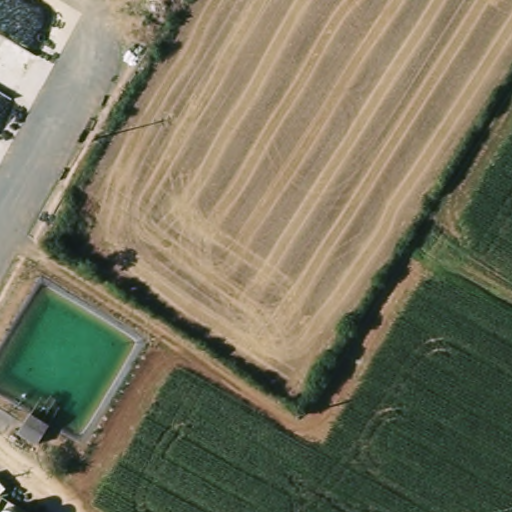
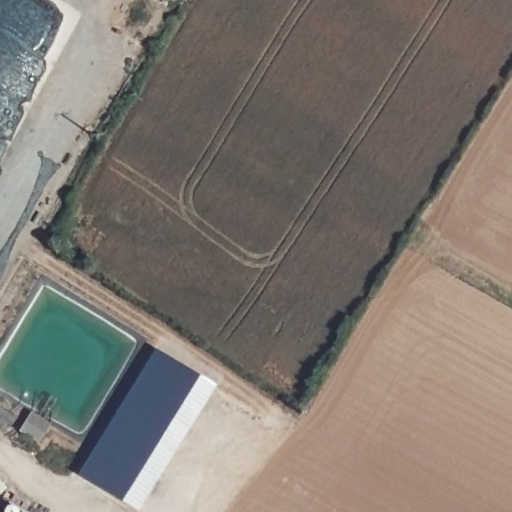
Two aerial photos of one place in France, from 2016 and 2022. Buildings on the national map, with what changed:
new [(138,512),(78,473),(155,349),(215,386),(138,512)]
unchanged [(47,428),(38,443),(19,432),(25,422),(30,413),(49,426),(47,428)]

